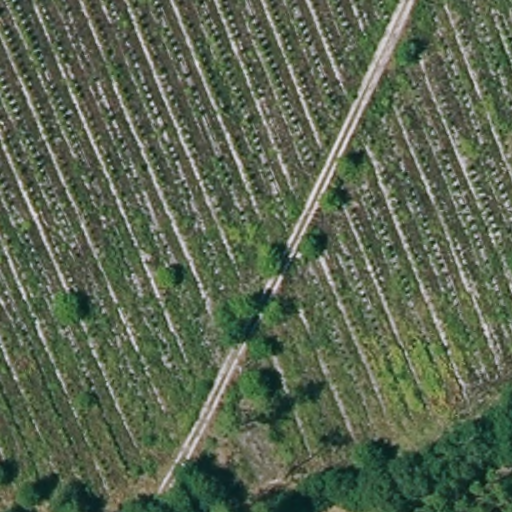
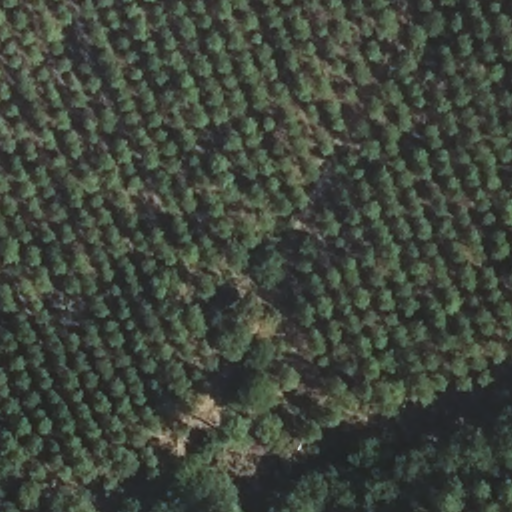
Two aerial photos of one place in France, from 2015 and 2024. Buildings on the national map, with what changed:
[]

